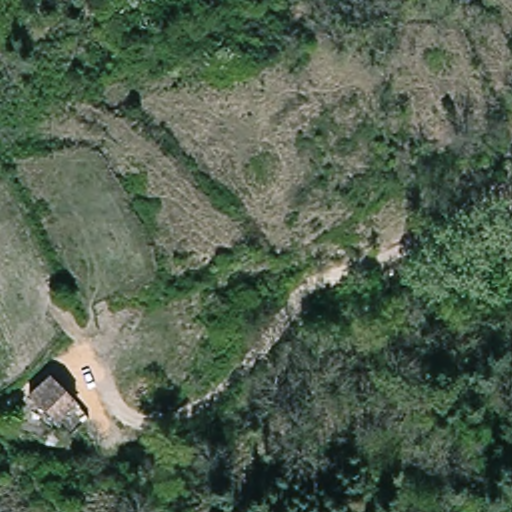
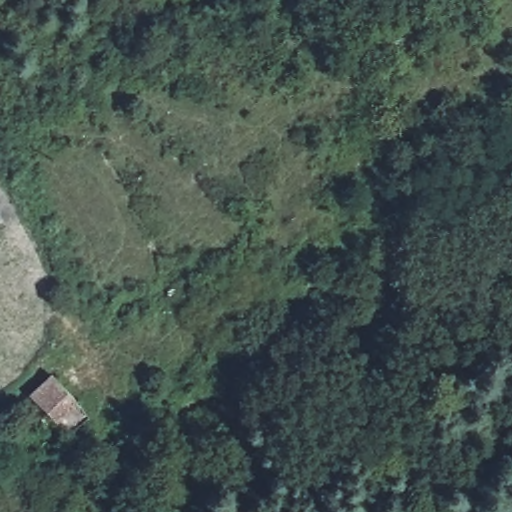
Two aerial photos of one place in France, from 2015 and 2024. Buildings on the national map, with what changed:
unchanged [(51,372),(73,393),(65,403),(79,416),(66,431),(29,396),(51,372)]

